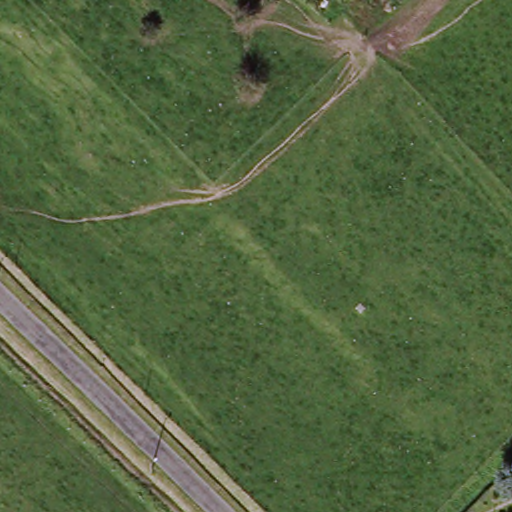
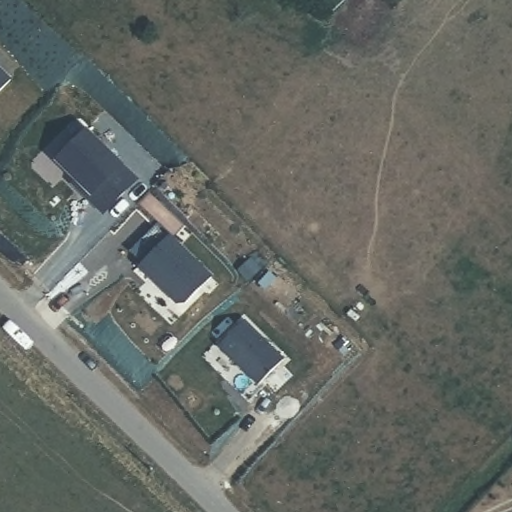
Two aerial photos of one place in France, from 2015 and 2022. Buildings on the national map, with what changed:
unchanged [(342,0),(353,0),(347,6),(342,0)]
new [(0,91),(0,70),(10,81),(0,91)]
new [(57,162),(87,132),(137,181),(109,209),(103,215),(73,185),(76,181),(57,162)]
new [(130,252),(155,227),(166,238),(169,236),(211,278),(185,305),(178,306),(139,266),(141,263),(130,252)]
new [(243,321),(283,360),(259,385),(219,346),(243,321)]

